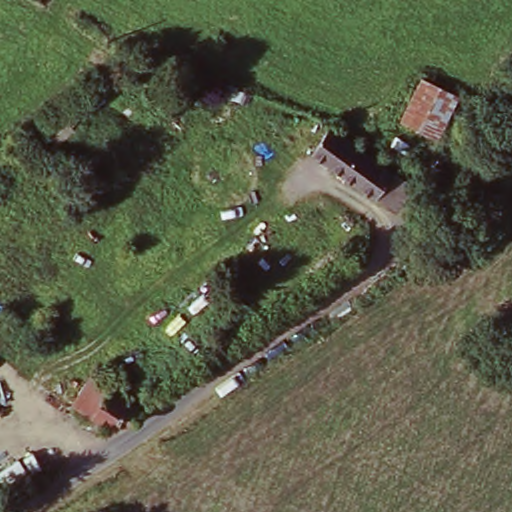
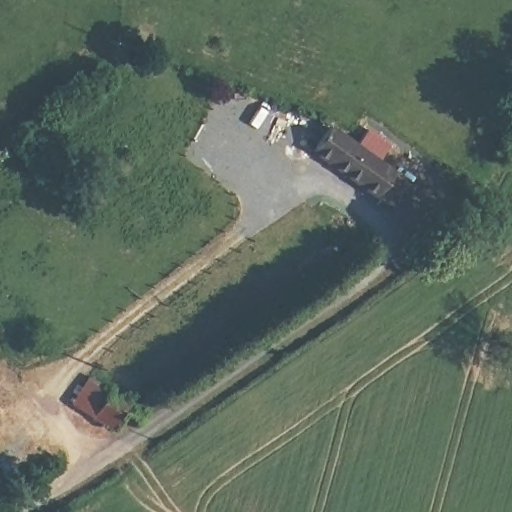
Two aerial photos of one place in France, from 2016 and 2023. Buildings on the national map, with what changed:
demolished [(422,78),(458,96),(437,137),(401,118),(422,78)]
unchanged [(330,132),(385,171),(412,190),(396,214),(376,200),(375,201),(313,157),(330,132)]
unchanged [(129,424),(122,420),(116,429),(73,404),(89,378),(146,412),(129,424)]

